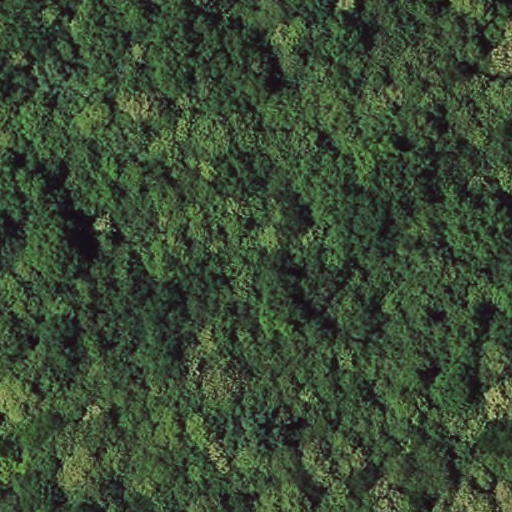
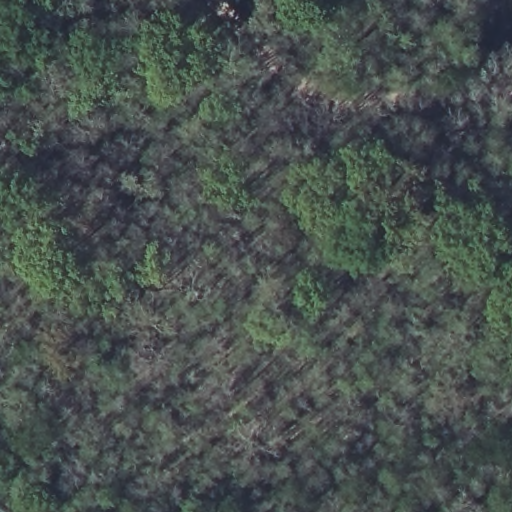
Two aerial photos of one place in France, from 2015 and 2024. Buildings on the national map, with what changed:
[]

